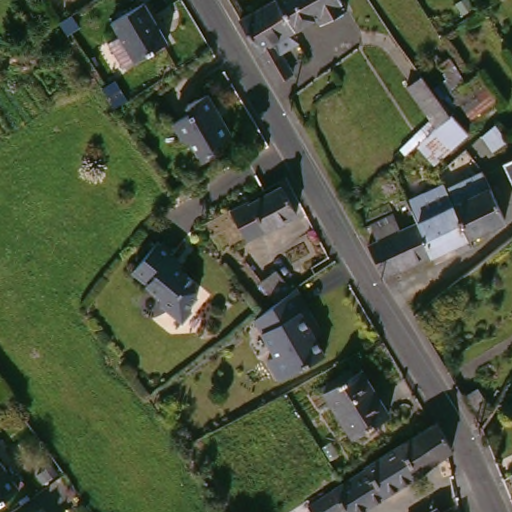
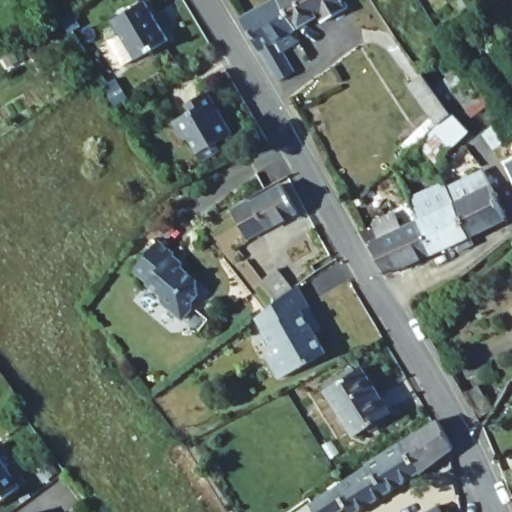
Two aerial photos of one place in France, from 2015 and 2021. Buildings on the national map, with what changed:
unchanged [(301,28),(305,35),(298,40),(294,32),(283,39),(302,70),(288,80),(281,67),(250,15),(277,0),(291,0),(305,25),(301,28)]
unchanged [(291,0),(354,0),(357,6),(334,20),(329,12),(305,25),(291,0)]
unchanged [(121,41),(132,35),(122,20),(153,1),(177,40),(146,57),(144,55),(134,62),(121,41)]
unchanged [(482,140),(454,164),(439,143),(420,160),(415,150),(445,124),(422,94),(435,83),(456,111),(464,121),(468,118),(482,140)]
unchanged [(242,132),(227,140),(231,146),(213,156),(203,138),(195,135),(185,118),(204,108),(199,100),(218,89),(242,132)]
unchanged [(512,165),(512,167),(511,165),(512,165)]
unchanged [(512,205),(512,216),(482,231),(459,183),(493,166),(512,205)]
unchanged [(427,219),(427,217),(424,210),(417,197),(458,179),(459,183),(482,231),(487,242),(472,250),(466,239),(442,250),(427,219)]
unchanged [(261,200),(262,202),(292,185),(307,212),(259,240),(242,210),(261,200)]
unchanged [(401,270),(396,272),(378,240),(388,235),(381,220),(404,210),(411,225),(427,217),(427,219),(442,250),(401,270)]
unchanged [(184,251),(180,256),(187,262),(191,262),(191,265),(207,276),(208,287),(200,298),(201,303),(192,315),(171,299),(170,290),(142,268),(166,238),(184,251)]
unchanged [(312,301),(322,317),(316,321),(332,348),(287,375),(275,355),(282,350),(262,317),(276,306),(287,297),(272,278),(286,267),(300,287),(303,285),(312,301)]
unchanged [(334,388),(370,365),(398,410),(364,433),(334,388)]
unchanged [(466,394),(477,387),(490,410),(479,416),(466,394)]
unchanged [(410,440),(442,420),(447,418),(461,447),(430,470),(410,440)]
unchanged [(0,440),(28,482),(0,501),(0,441),(0,440)]
unchanged [(430,470),(394,492),(377,463),(375,461),(410,440),(430,470)]
unchanged [(357,477),(377,463),(394,492),(362,512),(359,512),(354,505),(343,512),(325,512),(318,502),(356,478),(357,477)]
unchanged [(46,512),(45,512),(46,511),(46,512)]
unchanged [(432,512),(434,511),(435,512),(432,512)]

